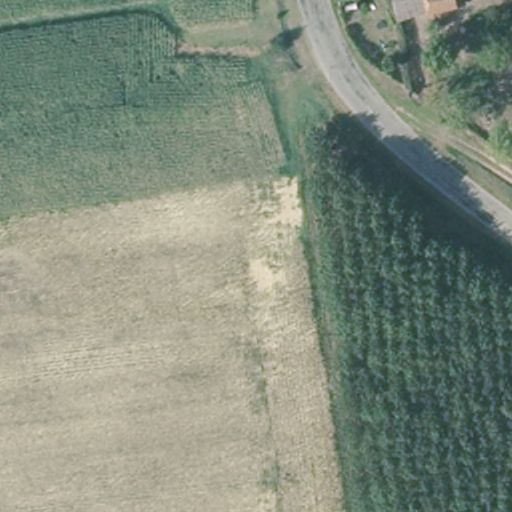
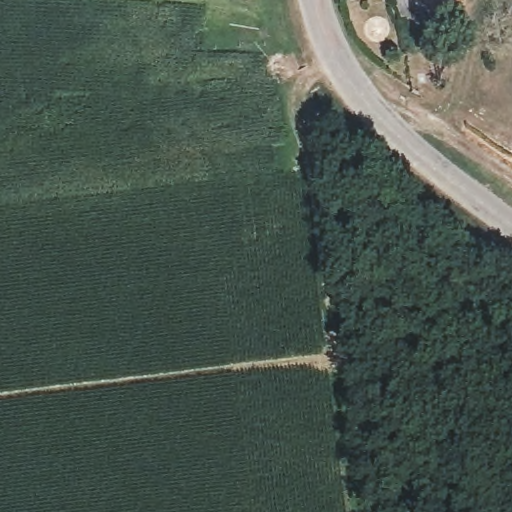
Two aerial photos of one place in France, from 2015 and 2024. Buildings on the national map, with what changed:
unchanged [(457,3),(432,9),(432,6),(401,17),(397,0),(457,0),(457,3)]

